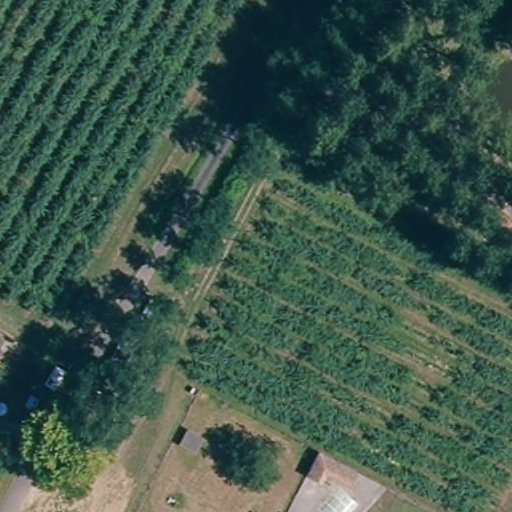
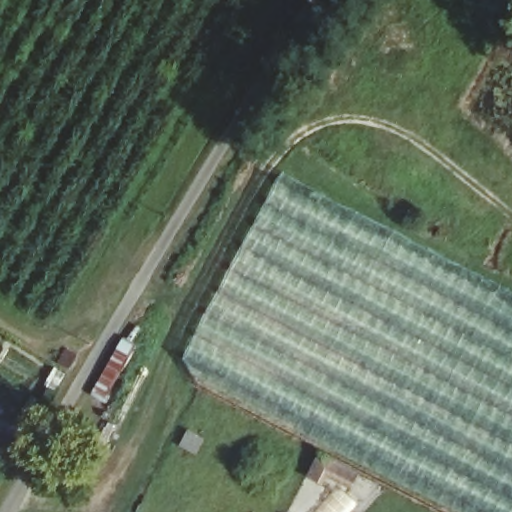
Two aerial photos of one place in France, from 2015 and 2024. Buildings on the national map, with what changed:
new [(283,171),(512,291),(512,512),(458,512),(194,375),(183,357),(283,171)]
unchanged [(135,345),(130,353),(106,395),(96,389),(126,340),(135,345)]
unchanged [(78,356),(70,371),(57,364),(66,349),(78,356)]
unchanged [(48,385),(56,370),(65,375),(56,390),(48,385)]
unchanged [(189,431),(203,439),(195,453),(181,446),(189,431)]
unchanged [(0,444),(0,440),(2,441),(0,444)]
unchanged [(319,451),(359,472),(353,483),(327,469),(320,482),(307,475),(319,451)]

